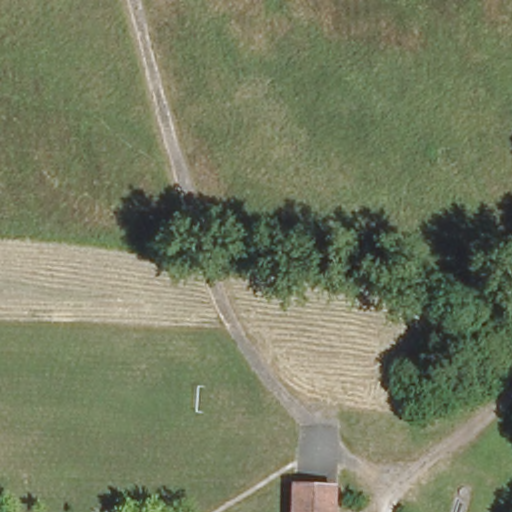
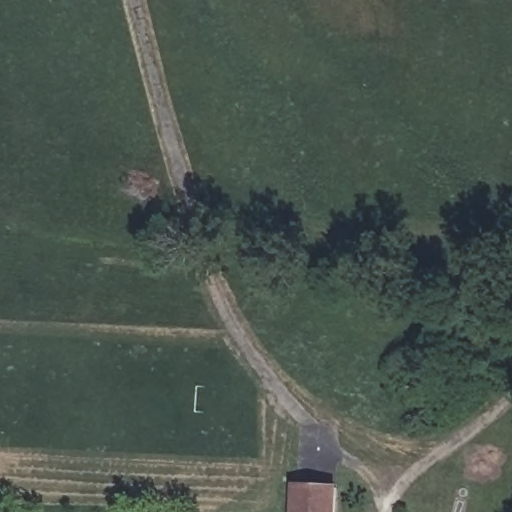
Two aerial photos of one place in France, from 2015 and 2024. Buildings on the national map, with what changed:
unchanged [(294,487),(338,488),(336,512),(293,512),(294,487)]

